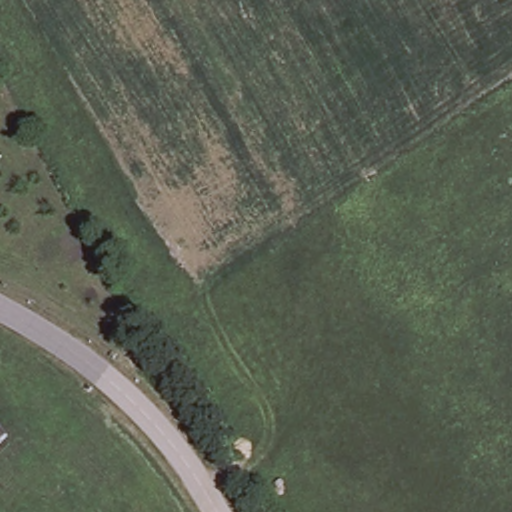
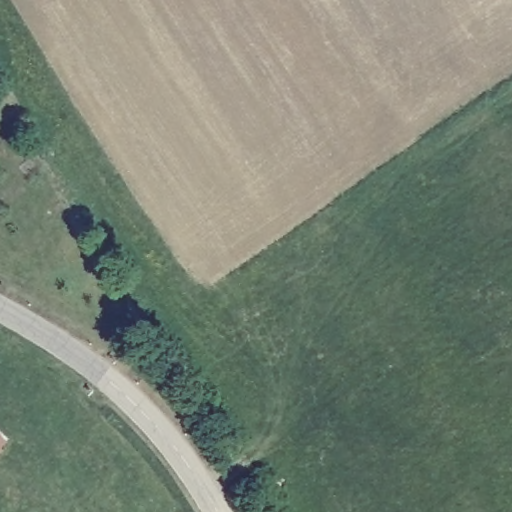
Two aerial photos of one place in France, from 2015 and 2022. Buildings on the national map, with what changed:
unchanged [(0,443),(0,434),(5,438),(0,443)]

